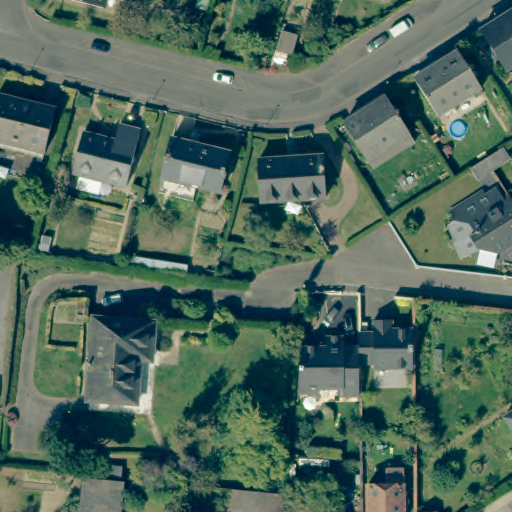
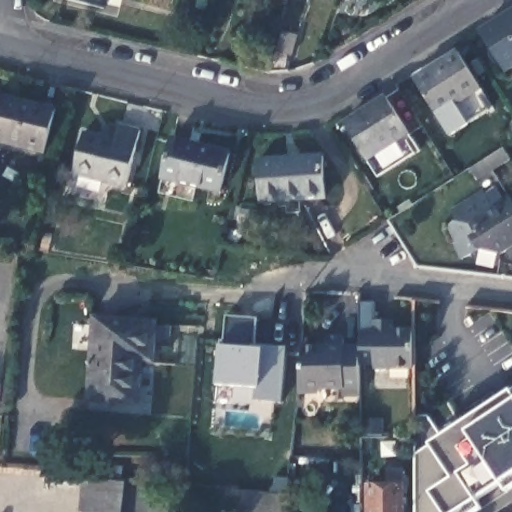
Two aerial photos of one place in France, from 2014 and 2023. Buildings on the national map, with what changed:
unchanged [(107,9),(69,0),(110,0),(107,9)]
unchanged [(512,15),(512,71),(511,71),(486,32),(512,15)]
unchanged [(301,35),(296,56),(279,51),(284,30),(301,35)]
unchanged [(462,52),(486,88),(443,116),(420,79),(462,52)]
unchanged [(46,153),(0,142),(0,95),(57,109),(46,153)]
unchanged [(387,98),(410,133),(368,160),(346,124),(387,98)]
unchanged [(117,141),(121,125),(142,131),(127,186),(77,173),(85,134),(117,141)]
unchanged [(231,153),(222,193),(164,179),(175,138),(231,153)]
unchanged [(503,148),(511,159),(493,170),(478,179),(472,168),(486,159),(503,148)]
unchanged [(324,156),(328,198),(262,202),(260,160),(324,156)]
unchanged [(473,215),(482,228),(476,231),(483,244),(504,249),(498,253),(480,249),(459,259),(447,224),(455,220),(450,211),(484,191),(486,194),(497,188),(502,197),(473,215)]
unchanged [(504,249),(483,244),(476,231),(482,228),(473,215),(512,191),(512,244),(504,249)]
new [(282,401),(255,399),(256,385),(216,381),(219,341),(223,341),(226,316),(257,319),(255,346),(286,348),(282,401)]
unchanged [(358,356),(358,353),(358,342),(359,330),(375,330),(375,318),(392,317),(392,326),(413,326),(413,364),(375,364),(375,359),(359,358),(358,358),(358,356)]
unchanged [(89,400),(95,318),(155,322),(153,348),(152,361),(139,360),(136,403),(89,400)]
unchanged [(324,342),(325,332),(343,332),(343,342),(358,342),(358,353),(358,356),(358,358),(359,358),(359,392),(343,391),(342,389),(342,383),(323,383),(320,388),(307,388),(303,385),(297,384),(301,342),(324,342)]
new [(500,482),(455,512),(444,512),(435,497),(431,492),(451,478),(430,444),(443,436),(511,392),(512,393),(512,474),(500,482)]
demolished [(504,418),(512,413),(512,430),(504,418)]
new [(418,416),(428,416),(443,436),(430,444),(451,478),(431,492),(435,497),(444,512),(415,512),(416,456),(418,416)]
unchanged [(369,512),(368,485),(387,485),(387,469),(402,469),(402,473),(402,498),(403,512),(369,512)]
unchanged [(121,512),(81,512),(84,480),(124,484),(121,512)]
unchanged [(231,512),(234,489),(282,494),(281,512),(231,512)]

